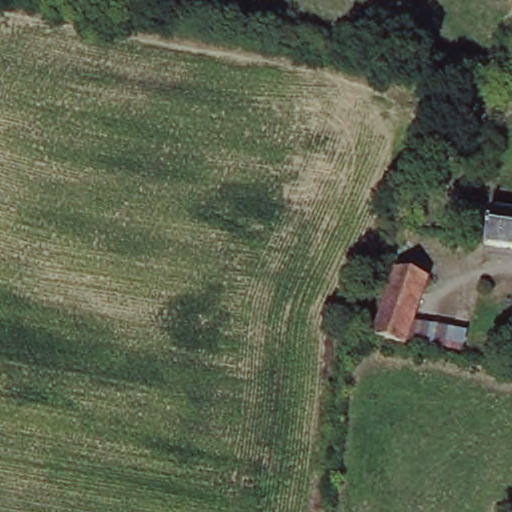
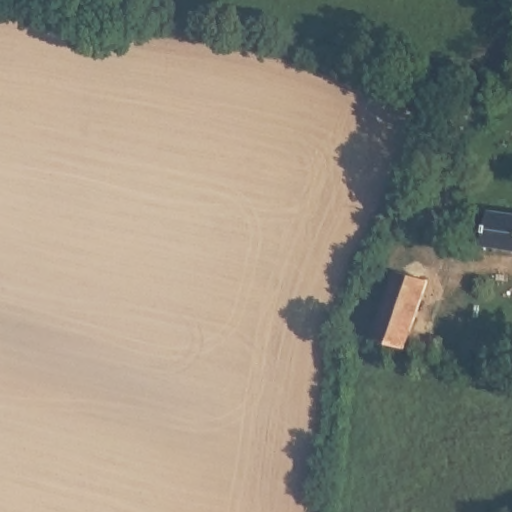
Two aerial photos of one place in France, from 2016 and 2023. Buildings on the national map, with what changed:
unchanged [(490,205),(512,210),(512,250),(479,242),(490,205)]
unchanged [(405,345),(377,336),(400,266),(427,276),(407,341),(405,345)]
unchanged [(468,331),(464,353),(407,341),(413,323),(468,331)]

